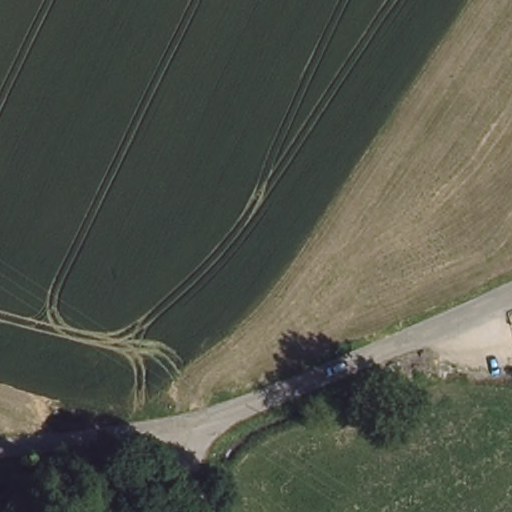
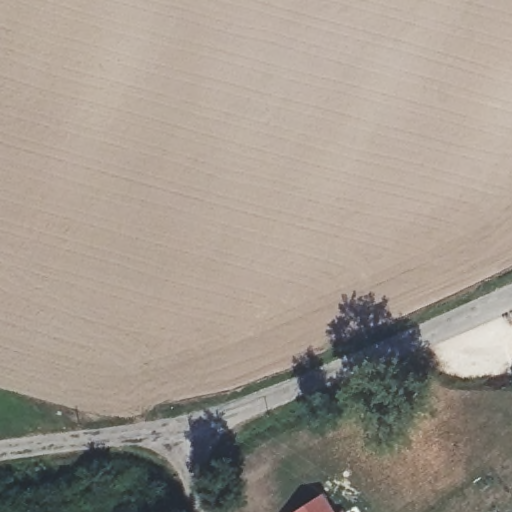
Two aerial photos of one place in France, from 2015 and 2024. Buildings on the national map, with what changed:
new [(322,493),(334,512),(294,512),(322,493)]

